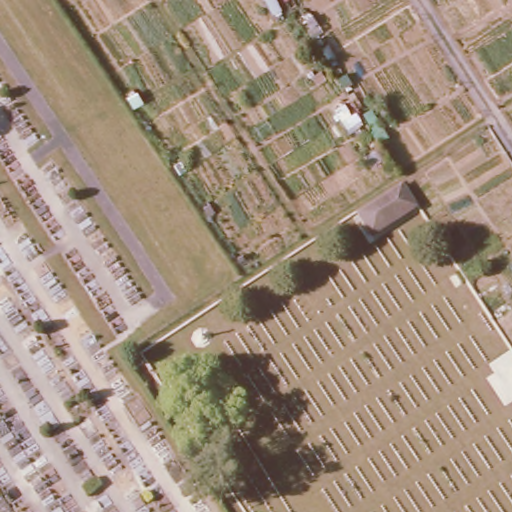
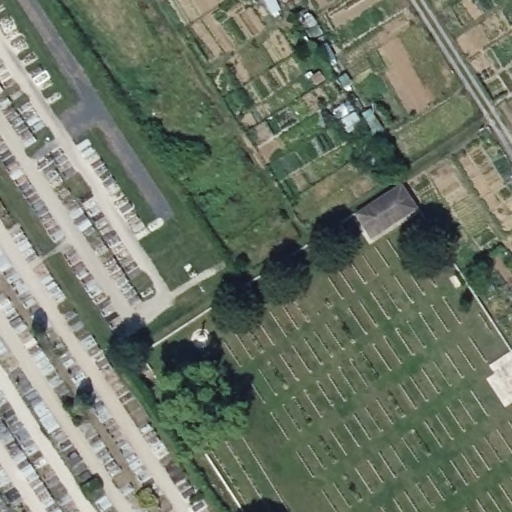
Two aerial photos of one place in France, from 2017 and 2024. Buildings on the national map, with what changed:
unchanged [(419,209),(374,240),(356,214),(402,182),(419,209)]

